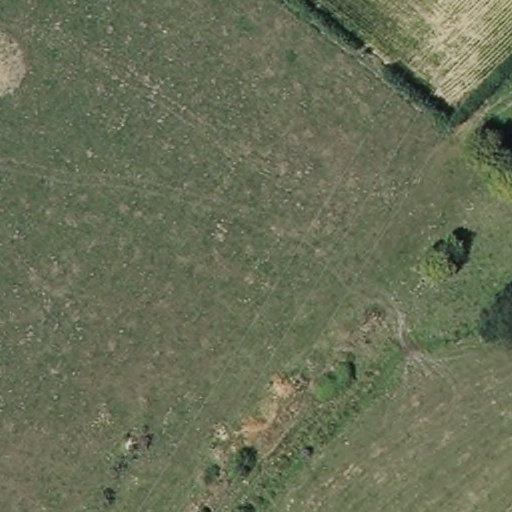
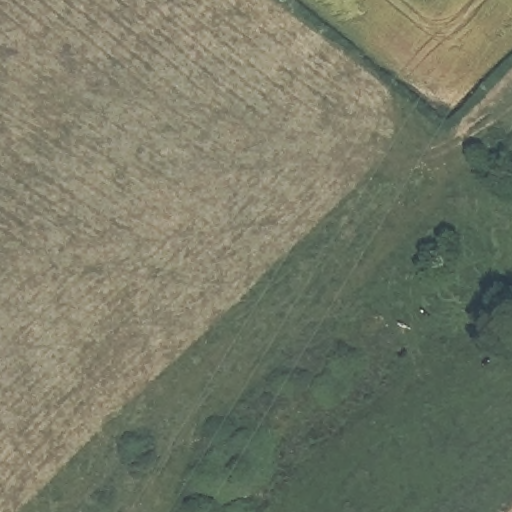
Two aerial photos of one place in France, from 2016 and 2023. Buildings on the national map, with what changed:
[]

